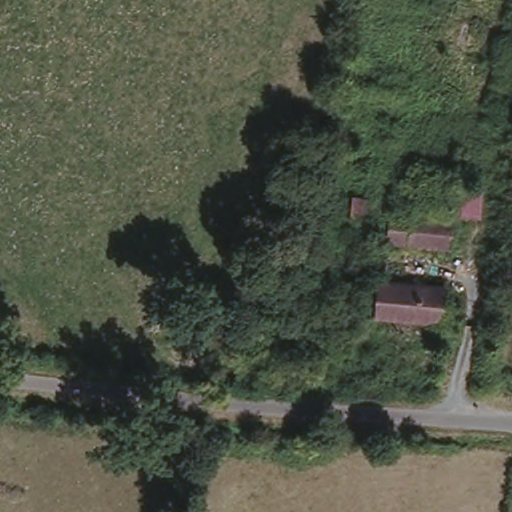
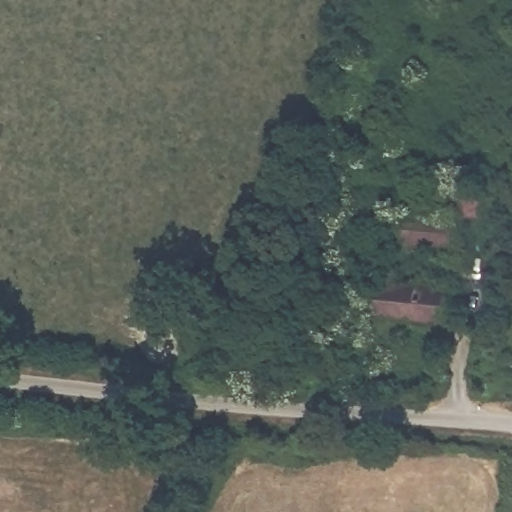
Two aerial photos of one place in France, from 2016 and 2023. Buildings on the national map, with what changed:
unchanged [(488,190),(483,217),(451,213),(455,186),(488,190)]
unchanged [(394,200),(394,210),(448,220),(443,251),(385,243),(387,222),(351,217),(353,195),(394,200)]
unchanged [(443,286),(438,323),(374,313),(380,277),(443,286)]

